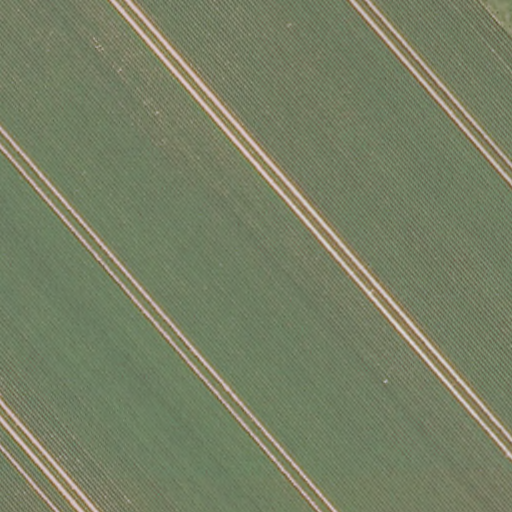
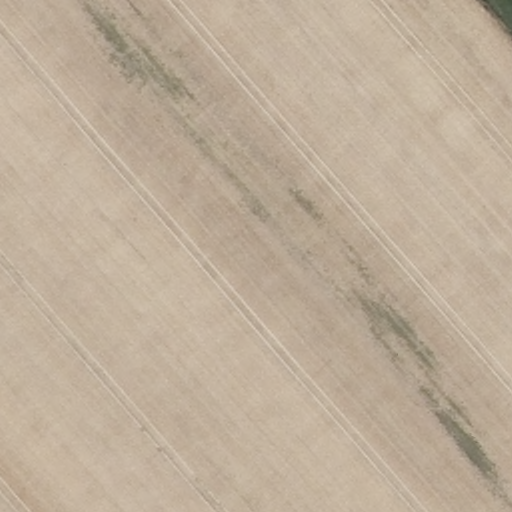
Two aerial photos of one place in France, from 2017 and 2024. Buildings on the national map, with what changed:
[]

